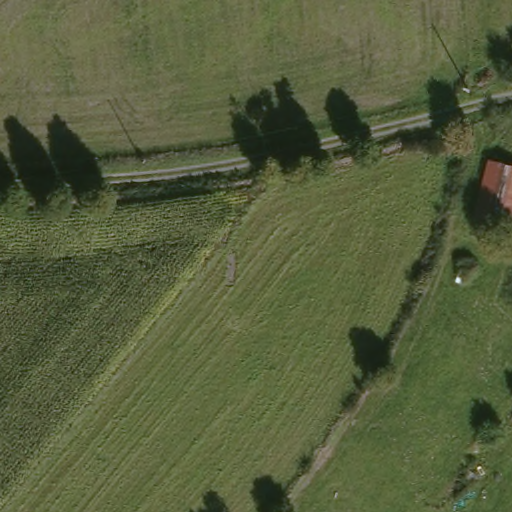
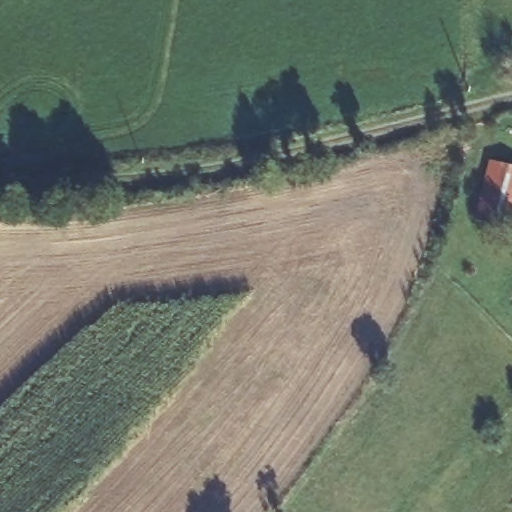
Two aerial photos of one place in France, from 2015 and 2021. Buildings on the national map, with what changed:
unchanged [(475,221),(490,162),(512,168),(512,231),(475,221)]

